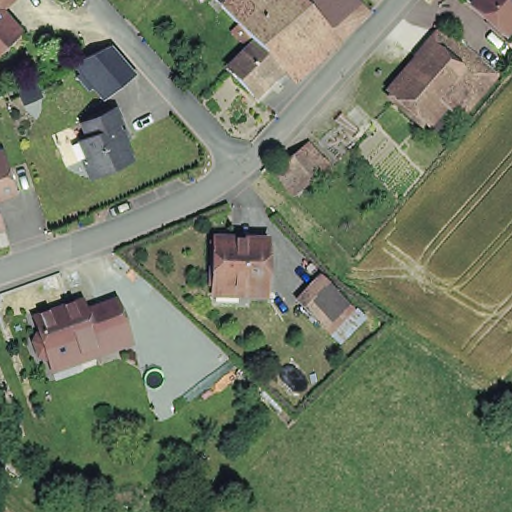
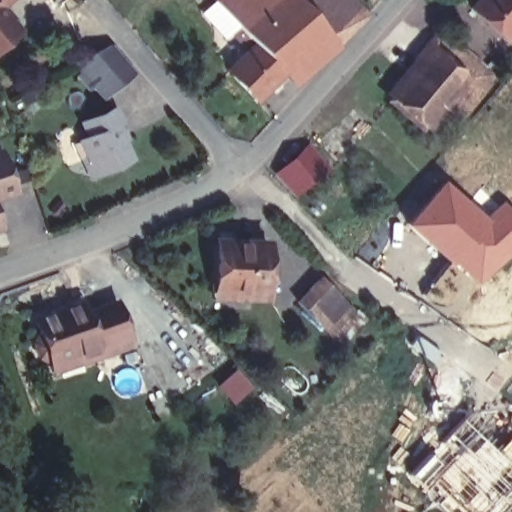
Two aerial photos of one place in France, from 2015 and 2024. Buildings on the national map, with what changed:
unchanged [(7,0),(0,6),(0,0),(7,0)]
unchanged [(228,29),(236,22),(218,2),(220,0),(298,0),(326,32),(281,72),(251,98),(226,70),(248,51),(228,29)]
unchanged [(339,19),(326,32),(298,0),(347,0),(359,13),(345,26),(339,19)]
unchanged [(493,0),(512,0),(512,44),(479,16),(493,0)]
unchanged [(19,29),(0,45),(0,7),(19,29)]
unchanged [(503,73),(463,121),(445,110),(426,132),(381,96),(446,19),(503,73)]
new [(73,62),(111,43),(136,72),(103,100),(73,62)]
unchanged [(89,131),(83,115),(116,100),(124,120),(120,122),(133,154),(93,171),(85,153),(88,152),(80,134),(89,131)]
unchanged [(0,189),(0,143),(3,142),(15,185),(0,189)]
unchanged [(318,182),(314,179),(298,195),(279,176),(308,147),(330,170),(318,182)]
new [(483,212),(499,197),(512,212),(512,250),(474,285),(403,222),(442,178),(483,212)]
unchanged [(3,226),(0,227),(0,212),(3,226)]
unchanged [(217,293),(217,287),(218,242),(274,242),(275,256),(274,288),(274,299),(216,298),(217,293)]
unchanged [(369,318),(340,347),(296,298),(323,273),(369,318)]
unchanged [(133,341),(55,368),(51,355),(47,355),(41,352),(36,341),(40,335),(43,335),(37,317),(83,301),(88,311),(118,301),(133,341)]
new [(253,390),(234,405),(218,388),(236,371),(253,390)]

